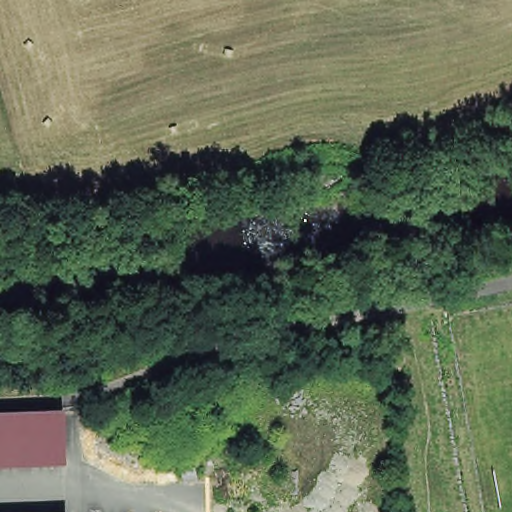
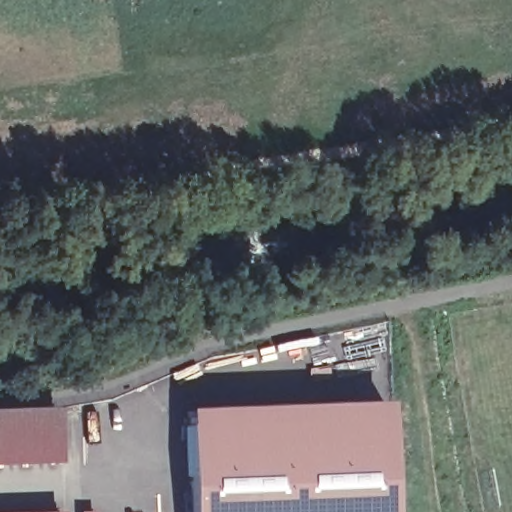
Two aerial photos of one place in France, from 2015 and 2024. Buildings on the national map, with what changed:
new [(397,404),(400,512),(197,512),(197,412),(397,404)]
unchanged [(58,407),(62,461),(0,463),(0,409),(58,407)]
unchanged [(64,511),(64,512),(34,512),(64,511)]

